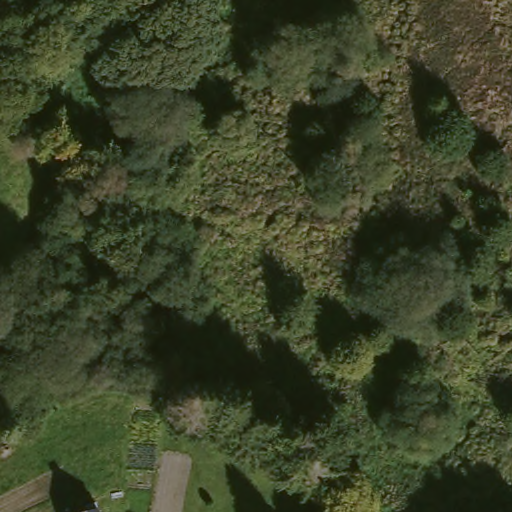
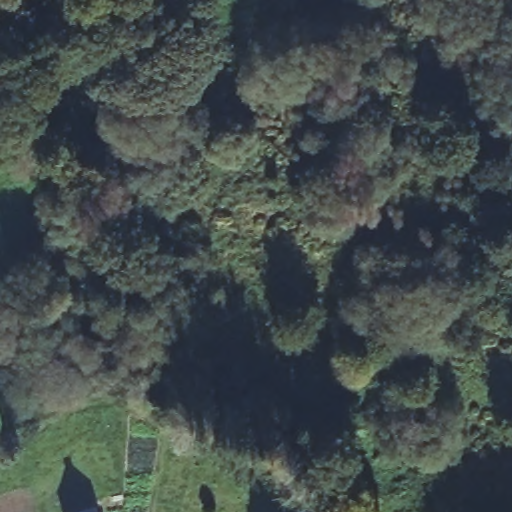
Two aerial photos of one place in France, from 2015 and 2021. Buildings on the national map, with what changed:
unchanged [(104,512),(65,512),(64,507),(99,498),(104,512)]

